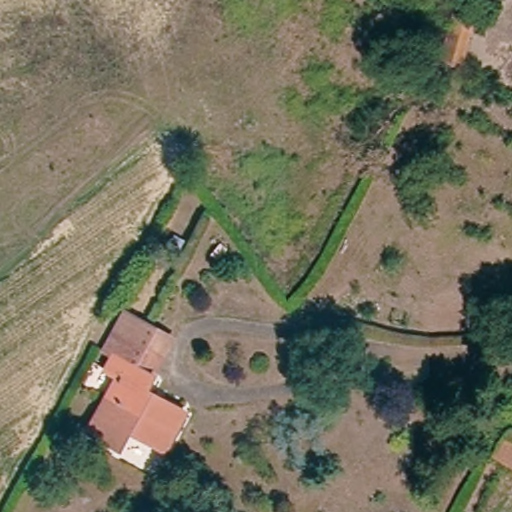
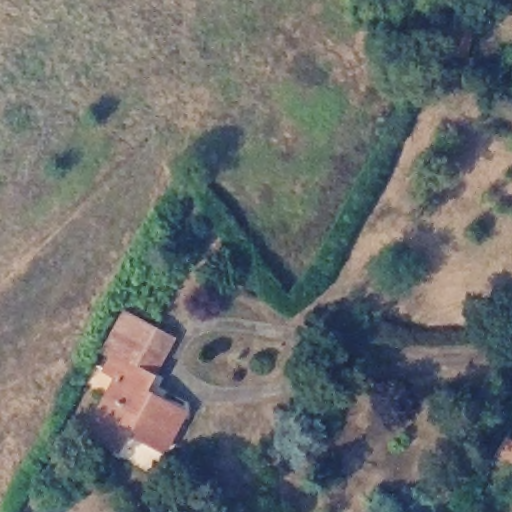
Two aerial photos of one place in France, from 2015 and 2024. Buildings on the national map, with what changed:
unchanged [(471,68),(449,55),(462,11),(484,20),(471,68)]
unchanged [(149,387),(189,409),(169,447),(131,426),(122,444),(91,428),(121,372),(109,366),(117,352),(108,347),(128,310),(176,336),(149,387)]
unchanged [(511,457),(502,452),(512,433),(512,458),(511,457)]

